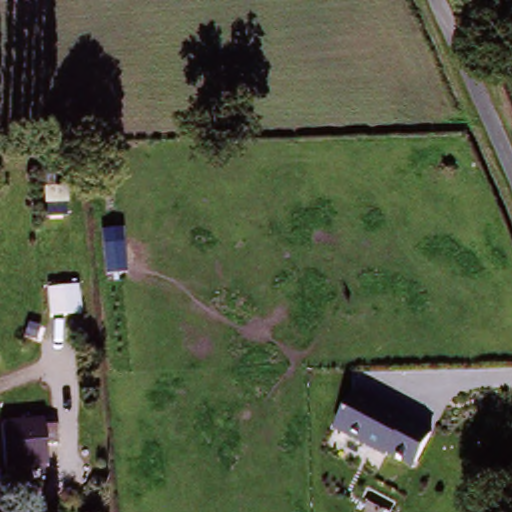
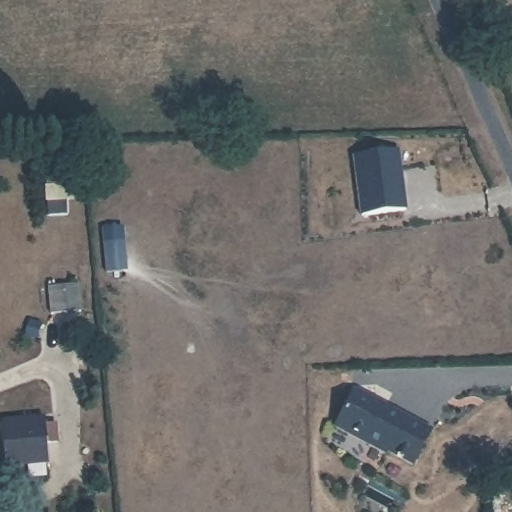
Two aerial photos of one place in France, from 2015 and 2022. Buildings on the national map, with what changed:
new [(407,212),(361,217),(352,158),(400,151),(407,212)]
unchanged [(80,194),(64,194),(63,202),(45,202),(45,182),(81,182),(80,194)]
unchanged [(120,226),(124,274),(110,276),(102,228),(120,226)]
unchanged [(56,283),(85,283),(85,306),(55,308),(56,283)]
unchanged [(433,426),(413,465),(338,428),(358,388),(433,426)]
unchanged [(0,421),(38,419),(40,462),(2,463),(0,421)]

